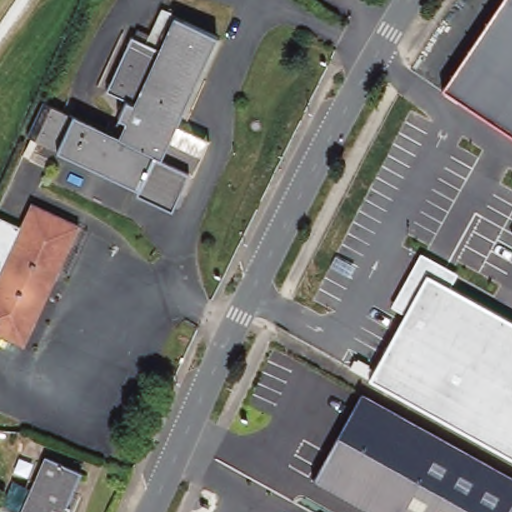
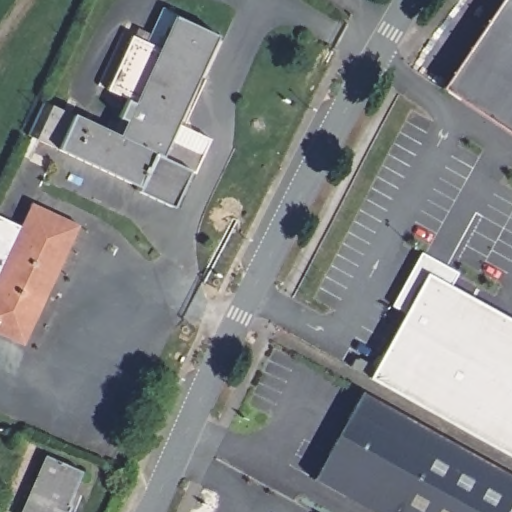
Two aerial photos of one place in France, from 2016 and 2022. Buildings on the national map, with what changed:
unchanged [(497,0),(512,0),(512,140),(438,91),(497,0)]
unchanged [(202,155),(194,174),(187,172),(172,208),(138,193),(140,188),(30,138),(46,102),(122,138),(129,124),(120,120),(129,101),(110,92),(134,38),(149,44),(163,9),(218,35),(178,124),(207,139),(202,155)]
unchanged [(36,199),(84,222),(30,341),(0,328),(0,277),(0,211),(25,224),(36,199)]
unchanged [(405,313),(391,306),(420,253),(458,274),(451,289),(512,323),(512,456),(370,378),(405,313)]
unchanged [(360,393),(512,475),(512,512),(375,512),(315,479),(360,393)]
unchanged [(69,501),(73,503),(69,512),(26,512),(51,455),(83,471),(69,501)]
unchanged [(317,509),(322,512),(316,512),(317,509)]

